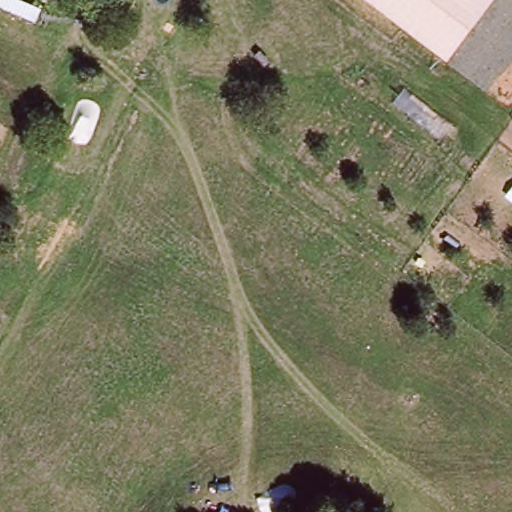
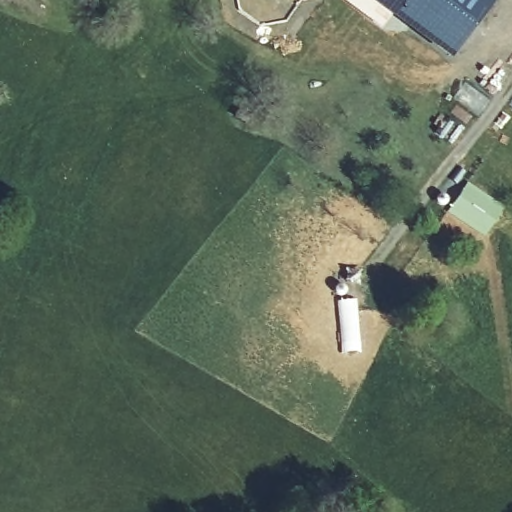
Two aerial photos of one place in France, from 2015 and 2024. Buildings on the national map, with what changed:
unchanged [(448,60),(369,0),(492,0),(448,60)]
new [(483,237),(448,212),(469,183),(504,208),(494,223),(483,237)]

